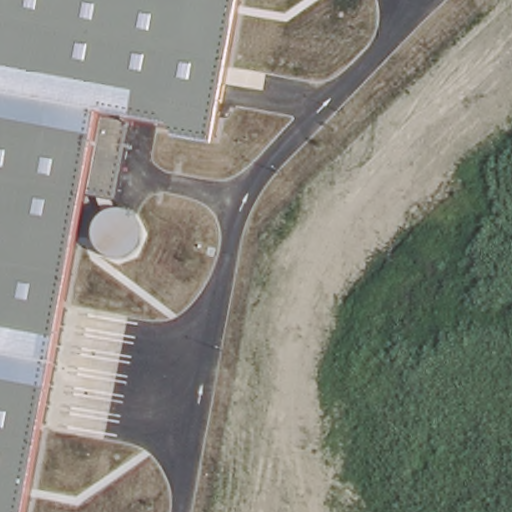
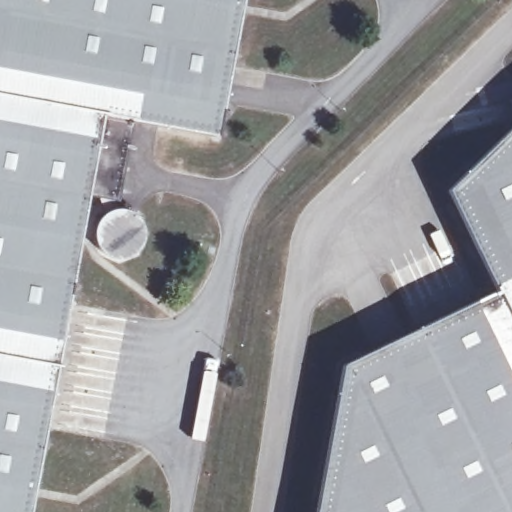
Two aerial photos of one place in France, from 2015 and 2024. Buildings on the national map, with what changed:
unchanged [(132,122),(116,201),(85,195),(27,512),(0,512),(0,0),(240,0),(215,136),(132,122)]
new [(509,102),(512,102),(512,124),(509,102)]
new [(339,366),(495,292),(445,190),(512,124),(512,512),(313,512),(339,366)]

